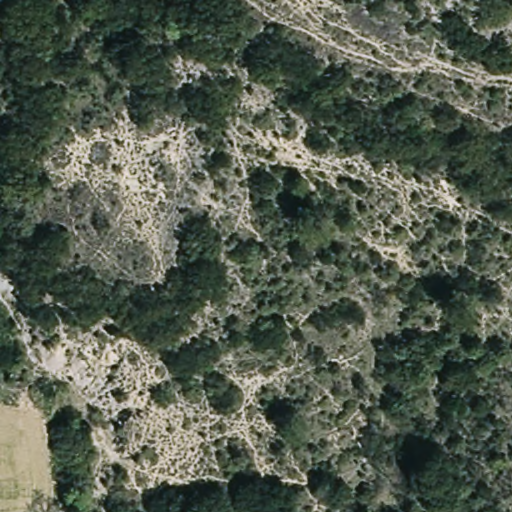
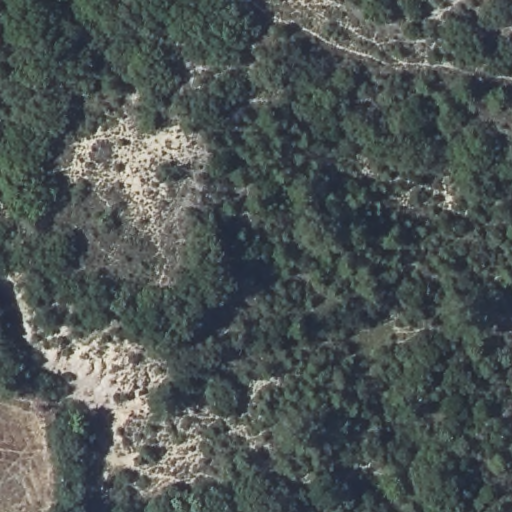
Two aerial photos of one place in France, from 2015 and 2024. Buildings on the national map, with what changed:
[]

